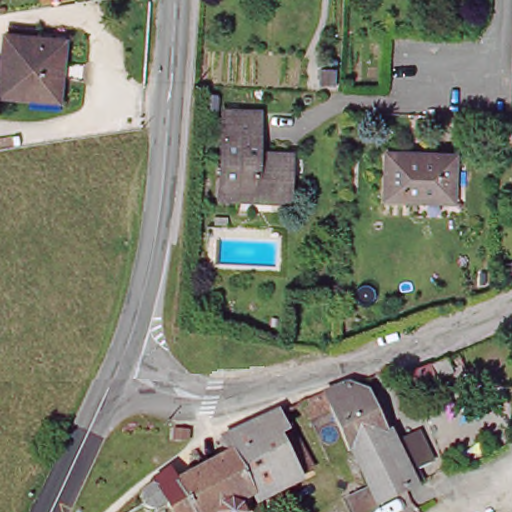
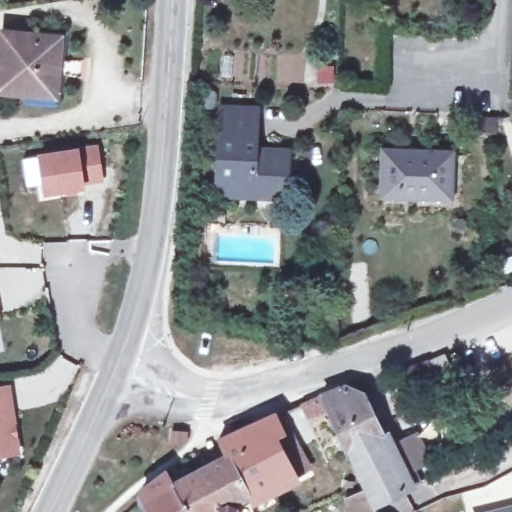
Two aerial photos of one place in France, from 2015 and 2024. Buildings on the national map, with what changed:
unchanged [(62,31),(56,105),(24,105),(24,91),(0,90),(0,32),(26,34),(27,29),(62,31)]
unchanged [(262,166),(261,159),(285,160),(283,195),(230,193),(232,202),(214,201),(217,131),(217,116),(249,116),(249,132),(247,166),(262,166)]
new [(102,182),(82,185),(84,190),(43,195),(37,154),(76,147),(97,145),(102,182)]
unchanged [(452,157),(452,195),(417,192),(412,200),(387,197),(387,154),(452,157)]
new [(421,353),(430,370),(403,382),(393,366),(421,353)]
new [(7,381),(18,447),(0,451),(0,382),(7,381)]
unchanged [(434,468),(419,477),(414,467),(402,474),(407,485),(397,490),(364,510),(312,398),(339,383),(372,451),(399,437),(415,432),(434,468)]
unchanged [(211,442),(267,415),(275,411),(306,463),(290,473),(294,478),(270,490),(265,480),(245,490),(220,455),(211,442)]
unchanged [(220,455),(245,490),(227,500),(229,501),(231,503),(232,505),(234,507),(234,510),(234,512),(221,512),(194,470),(220,455)]
unchanged [(194,470),(221,512),(208,512),(207,511),(206,512),(184,512),(166,487),(194,470)]
unchanged [(163,512),(155,501),(149,508),(145,511),(134,508),(132,506),(130,500),(136,490),(153,476),(157,474),(166,487),(184,512),(163,512)]
unchanged [(397,490),(409,512),(362,512),(364,510),(397,490)]
new [(512,512),(498,512),(512,508),(512,512)]

